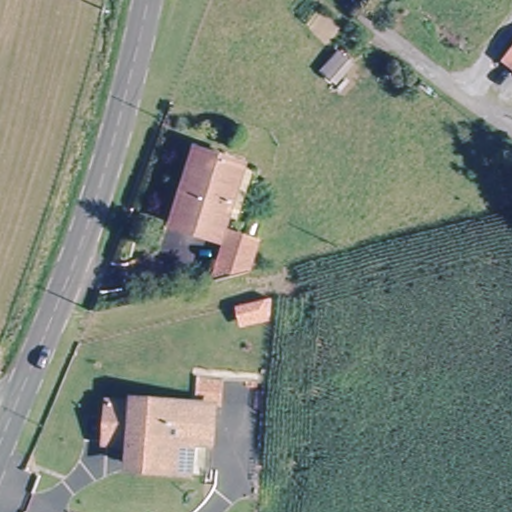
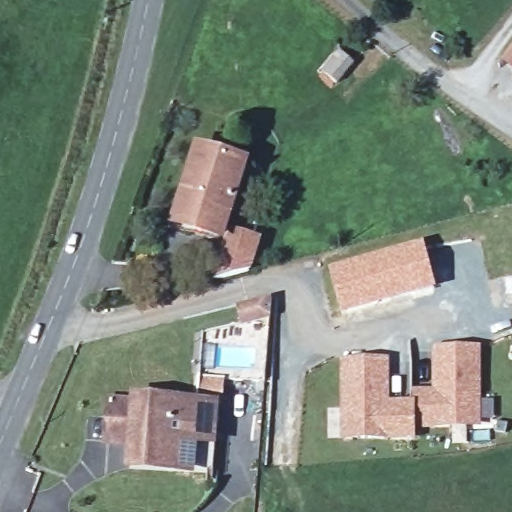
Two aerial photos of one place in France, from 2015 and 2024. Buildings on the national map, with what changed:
unchanged [(505,59),(512,50),(512,66),(505,59)]
unchanged [(337,85),(322,72),(341,53),(355,67),(337,85)]
unchanged [(221,229),(220,234),(172,218),(196,148),(242,162),(221,229)]
unchanged [(209,282),(226,230),(252,241),(242,272),(209,282)]
new [(424,241),(437,289),(342,312),(329,267),(424,241)]
new [(271,296),(271,319),(239,323),(236,305),(271,296)]
new [(340,359),(390,359),(390,401),(412,401),(412,389),(432,389),(432,345),(481,346),(482,429),(415,429),(415,441),(341,441),(340,359)]
unchanged [(128,452),(128,449),(103,448),(106,409),(131,410),(131,405),(194,408),(191,472),(157,470),(127,469),(128,452)]
unchanged [(214,410),(210,473),(191,472),(194,408),(214,410)]

